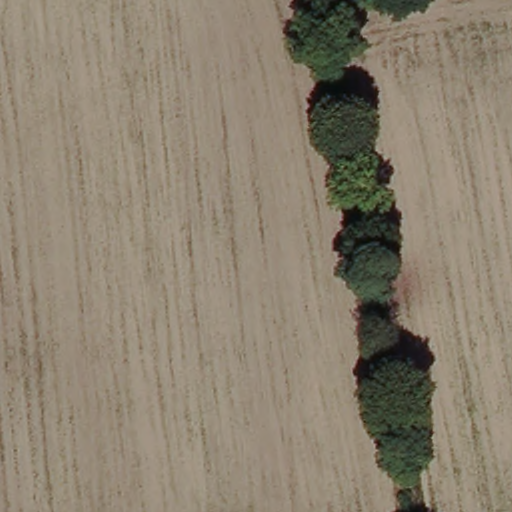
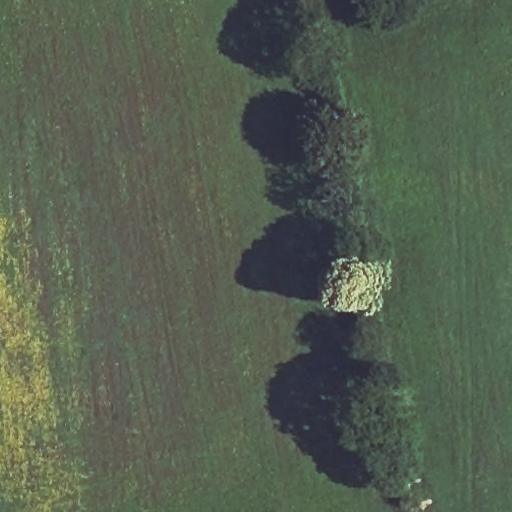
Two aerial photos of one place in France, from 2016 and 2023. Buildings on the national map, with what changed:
[]

